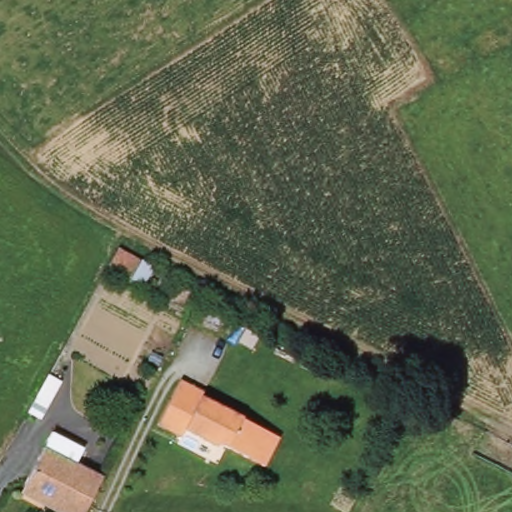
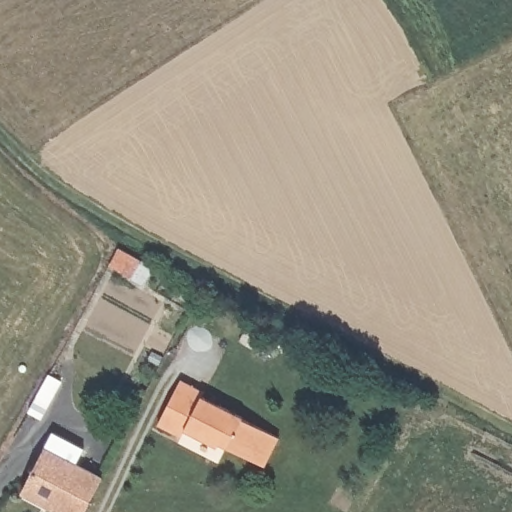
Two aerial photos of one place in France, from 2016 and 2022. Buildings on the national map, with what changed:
unchanged [(126,273),(110,263),(120,247),(136,258),(126,273)]
unchanged [(206,396),(205,399),(282,443),(266,470),(224,445),(221,449),(189,429),(183,438),(159,424),(182,382),(206,396)]
unchanged [(88,512),(61,512),(23,492),(46,448),(105,479),(88,512)]

